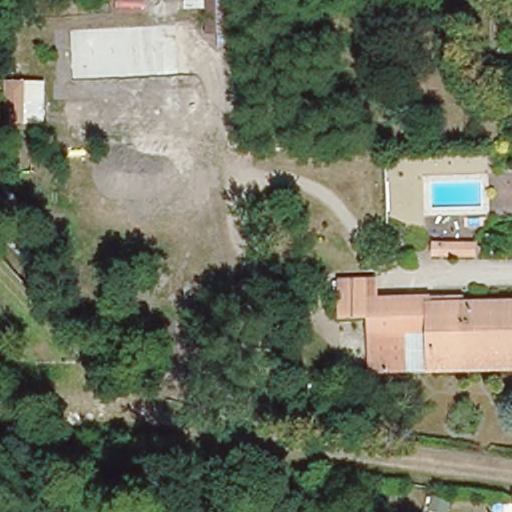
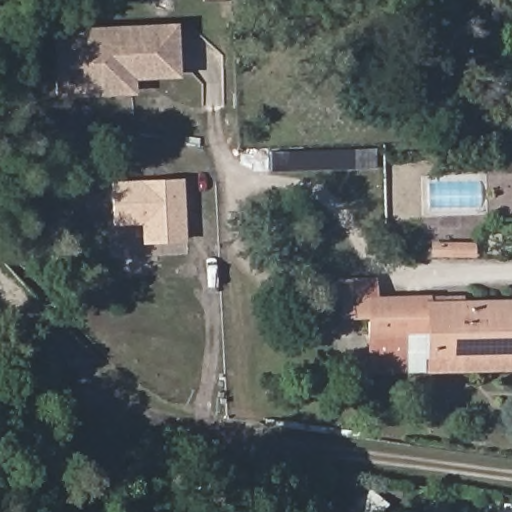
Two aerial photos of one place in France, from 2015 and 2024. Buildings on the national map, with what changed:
new [(53,27),(176,22),(179,76),(134,78),(135,93),(54,97),(53,27)]
new [(140,224),(111,224),(109,182),(183,178),(186,241),(141,243),(140,224)]
new [(430,242),(472,243),(472,255),(429,254),(430,242)]
unchanged [(398,332),(397,366),(364,368),(366,309),(338,307),(340,280),(367,282),(367,295),(425,298),(460,300),(460,310),(512,313),(512,360),(424,354),(425,333),(398,332)]
unchanged [(512,360),(512,374),(424,370),(424,365),(424,354),(512,360)]

